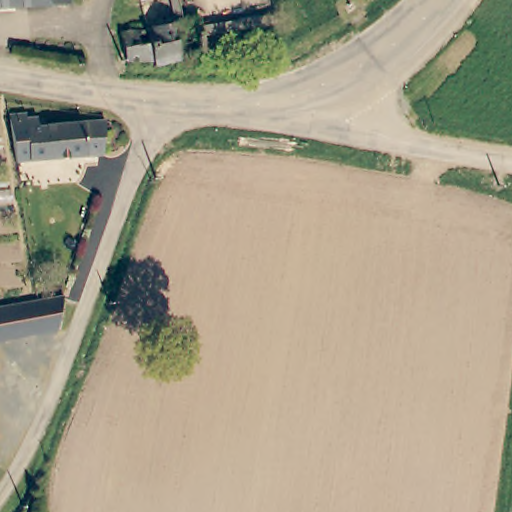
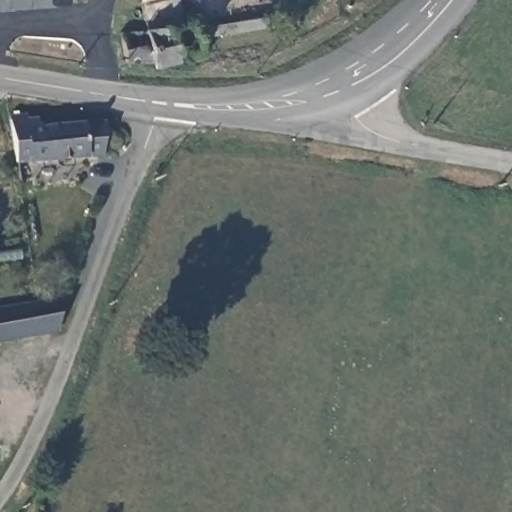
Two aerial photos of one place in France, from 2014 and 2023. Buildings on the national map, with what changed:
unchanged [(68,7),(0,9),(0,0),(68,0),(68,7)]
unchanged [(155,66),(154,58),(126,63),(120,32),(173,21),(181,61),(155,66)]
unchanged [(112,163),(27,166),(26,161),(20,125),(47,123),(48,130),(117,127),(112,163)]
unchanged [(13,305),(58,300),(65,299),(57,335),(45,336),(0,341),(0,307),(13,305)]

